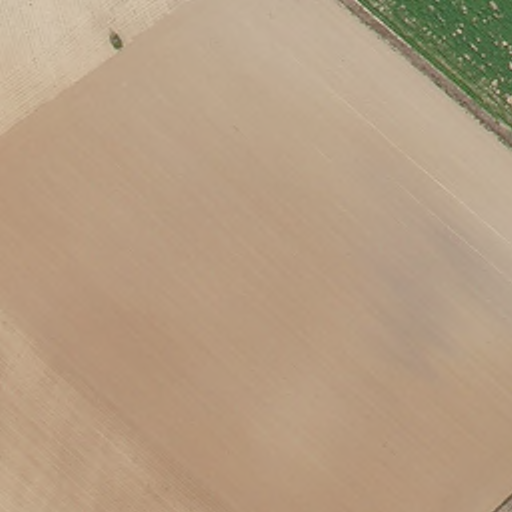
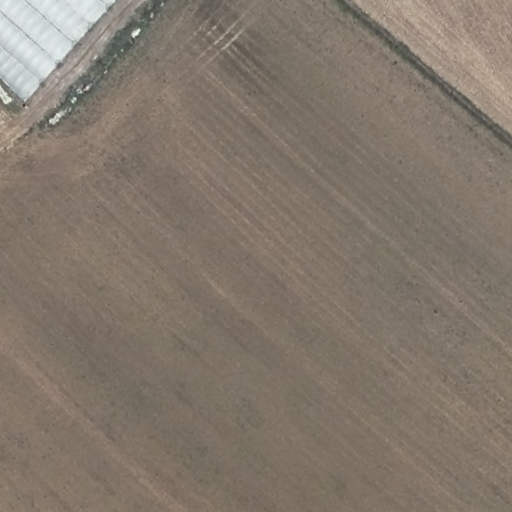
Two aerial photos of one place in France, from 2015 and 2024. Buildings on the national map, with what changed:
new [(26,102),(0,78),(0,0),(115,0),(26,102)]

